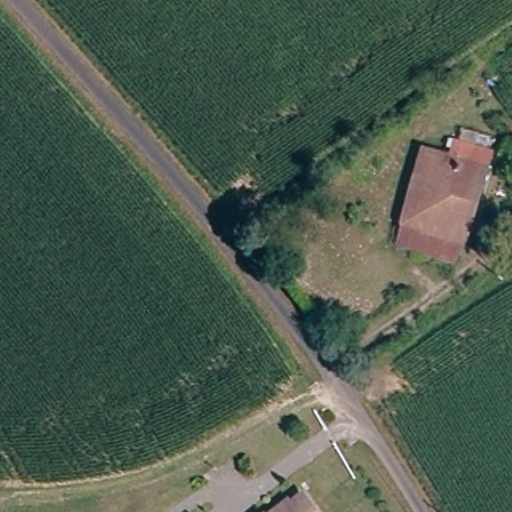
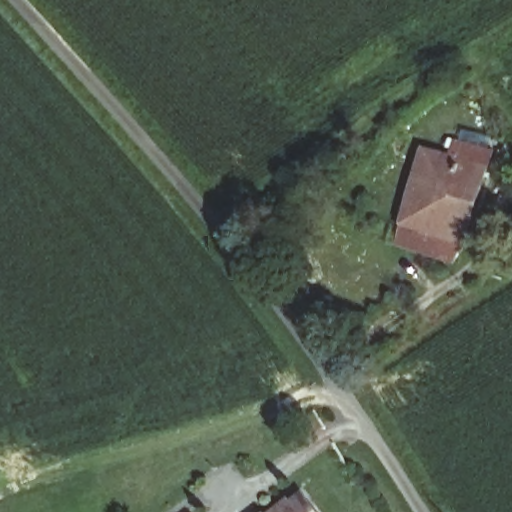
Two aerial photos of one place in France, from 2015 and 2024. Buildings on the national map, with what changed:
unchanged [(467,237),(441,271),(407,259),(410,247),(397,242),(422,149),(449,157),(457,137),(494,149),(467,237)]
unchanged [(287,504),(290,508),(302,499),(312,512),(276,512),(287,504)]

